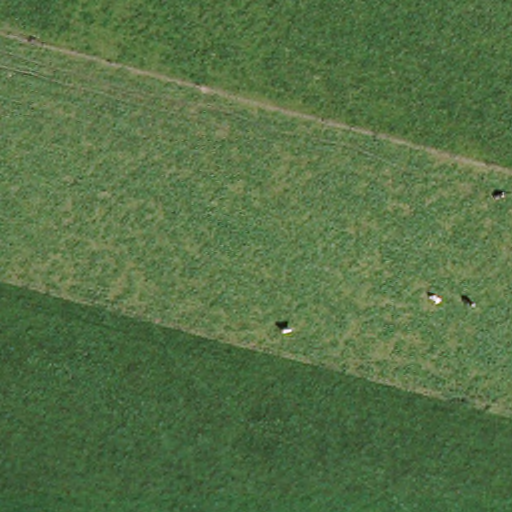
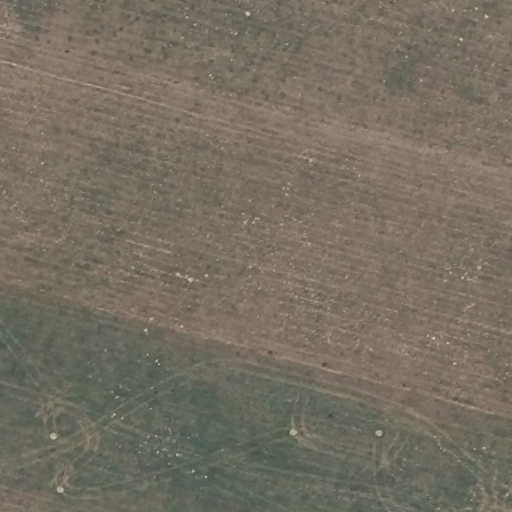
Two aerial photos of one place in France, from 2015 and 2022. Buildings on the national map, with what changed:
[]

